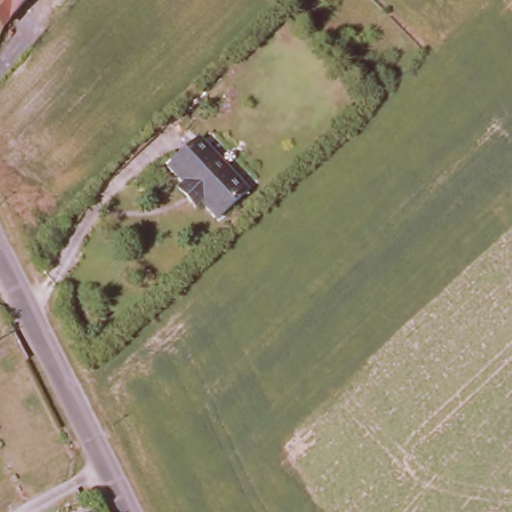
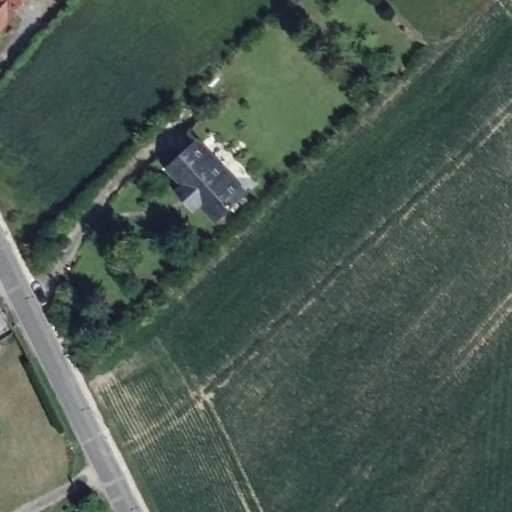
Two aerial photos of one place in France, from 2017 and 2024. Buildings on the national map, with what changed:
unchanged [(0,23),(0,0),(20,0),(0,23)]
unchanged [(257,195),(226,225),(177,175),(207,146),(257,195)]

